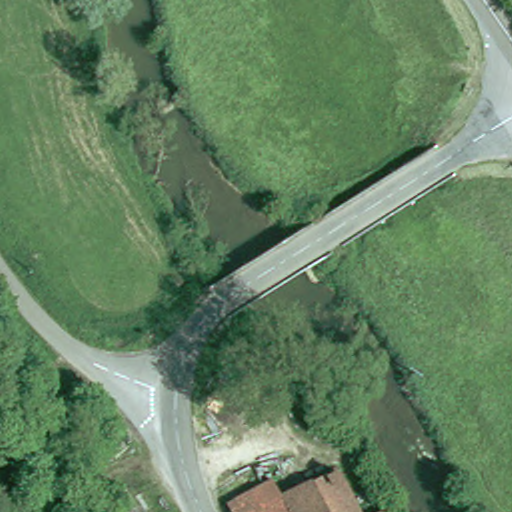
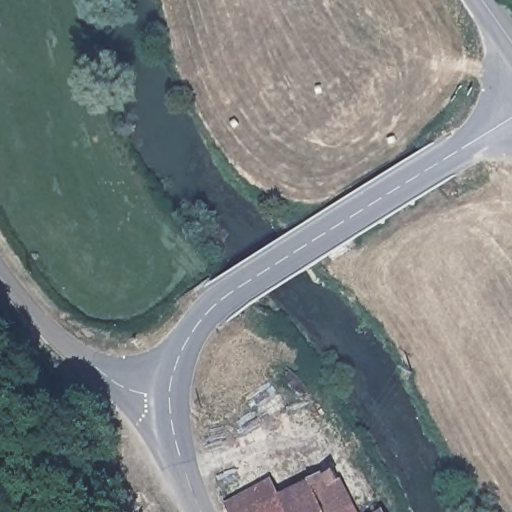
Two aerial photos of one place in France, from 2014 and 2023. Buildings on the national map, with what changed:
unchanged [(286,493),(330,468),(337,481),(345,476),(365,512),(239,512),(230,503),(275,477),(286,493)]
unchanged [(391,512),(379,512),(388,506),(391,512)]

